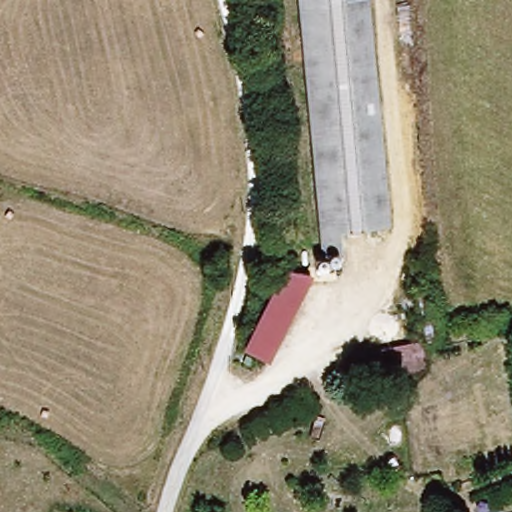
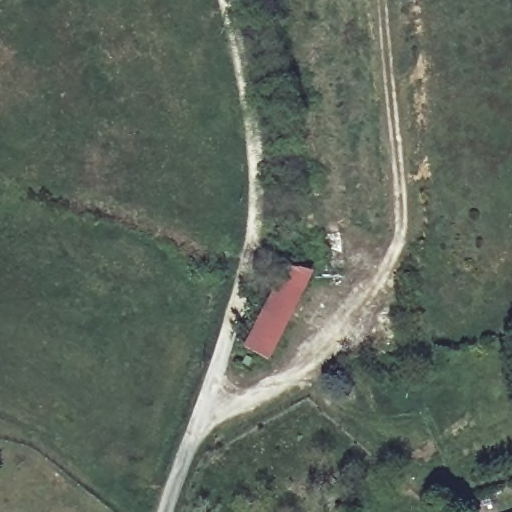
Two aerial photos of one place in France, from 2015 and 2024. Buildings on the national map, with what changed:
demolished [(295,0),(366,0),(399,221),(352,228),(355,245),(332,247),(295,0)]
unchanged [(273,355),(245,351),(278,257),(305,267),(273,355)]
unchanged [(425,340),(430,367),(369,376),(364,352),(425,340)]

